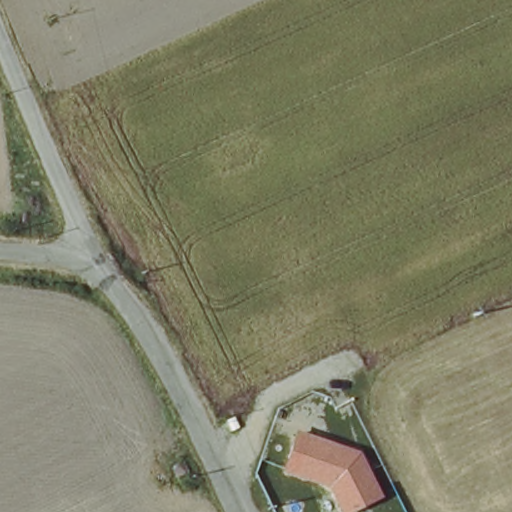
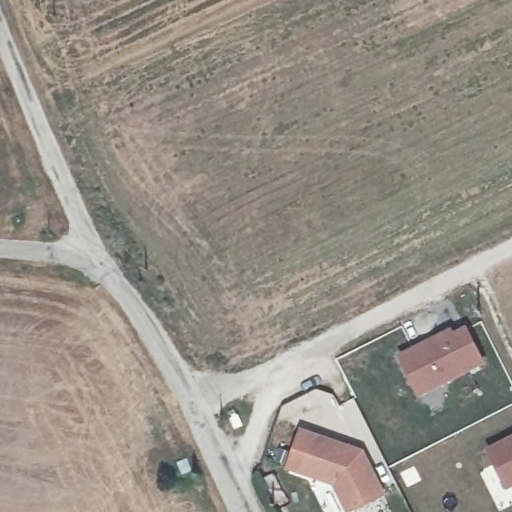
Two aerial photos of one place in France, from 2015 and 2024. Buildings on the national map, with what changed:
new [(458,324),(479,369),(415,398),(394,354),(458,324)]
new [(236,415),(241,425),(235,428),(230,418),(236,415)]
unchanged [(344,512),(331,484),(288,471),(300,429),(363,449),(386,496),(349,512),(344,512)]
new [(512,434),(512,494),(505,498),(483,449),(512,434)]

